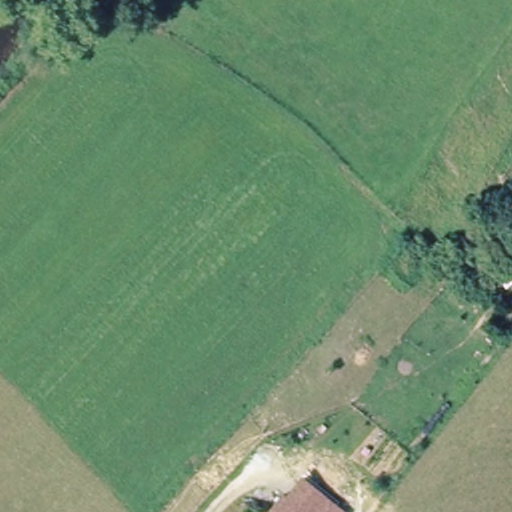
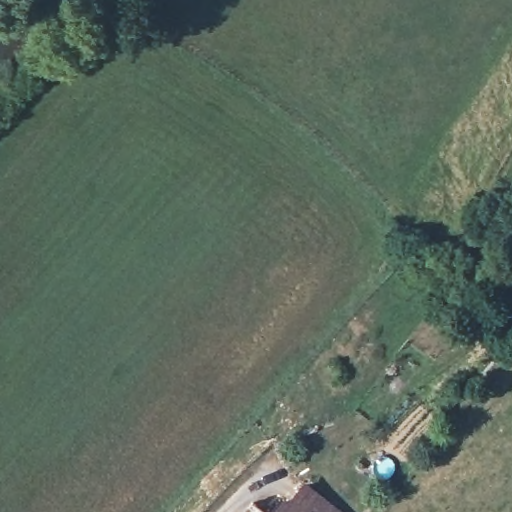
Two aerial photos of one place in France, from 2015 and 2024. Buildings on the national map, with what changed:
unchanged [(290,503),(306,485),(339,512),(278,512),(287,500),(290,503)]

